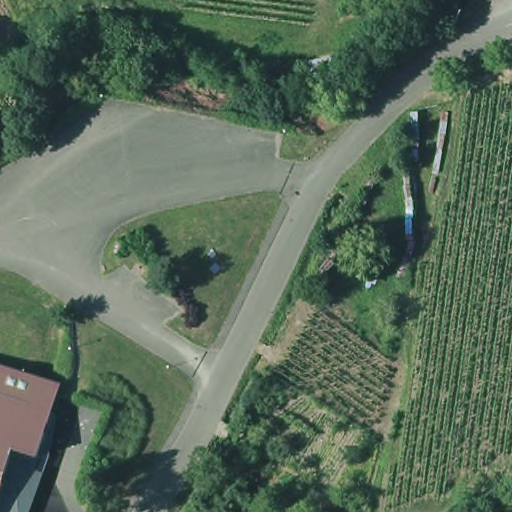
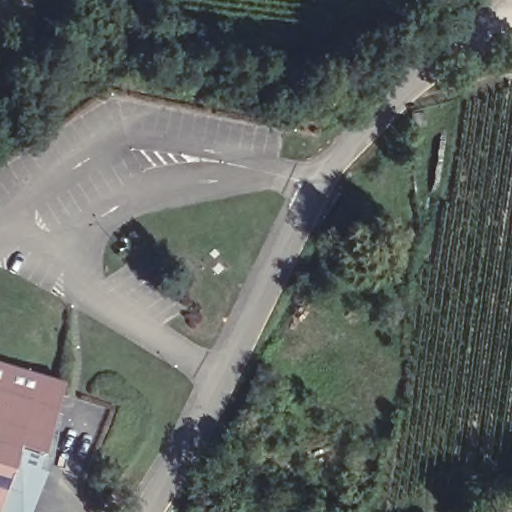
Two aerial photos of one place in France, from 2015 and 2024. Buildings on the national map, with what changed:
unchanged [(62,386),(43,451),(19,443),(0,502),(0,358),(64,378),(62,386)]

